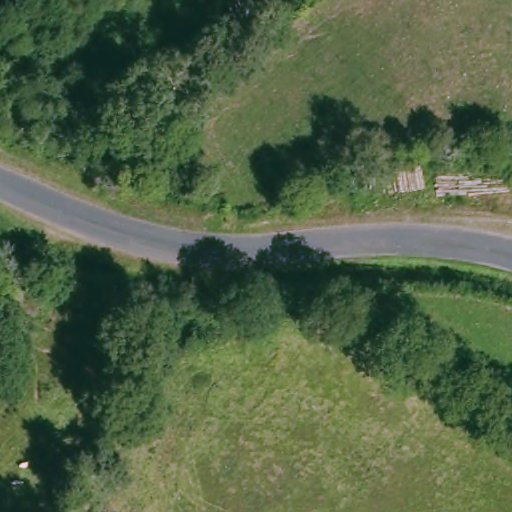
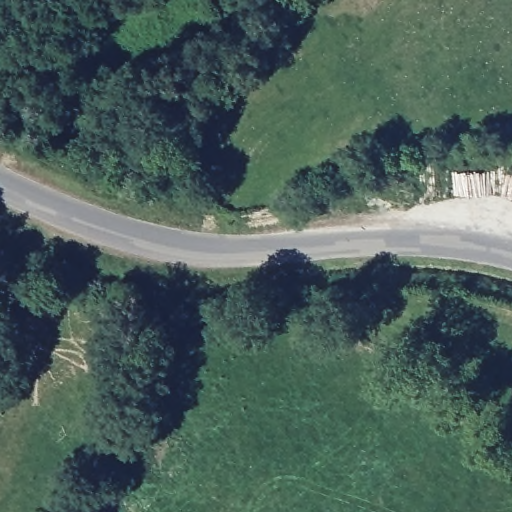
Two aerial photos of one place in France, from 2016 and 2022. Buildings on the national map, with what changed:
[]

